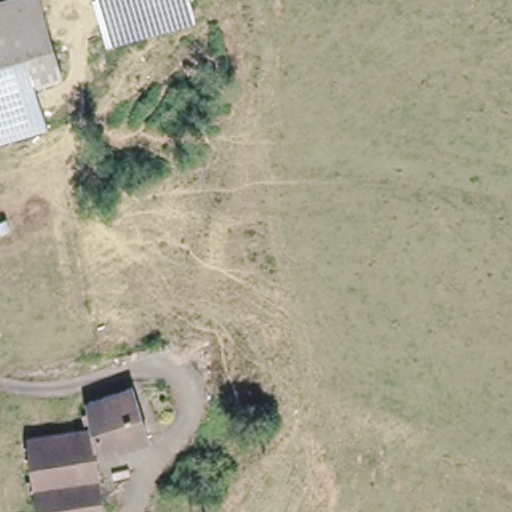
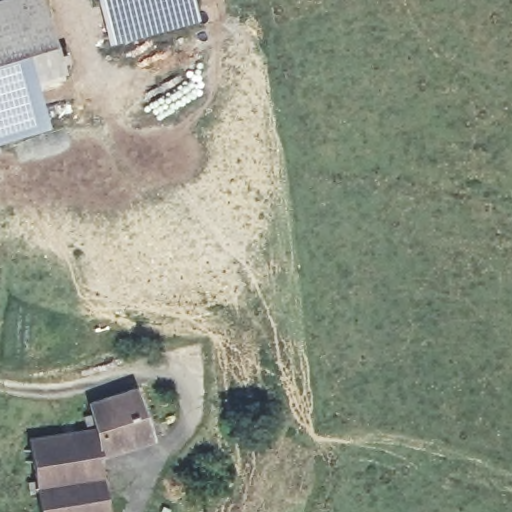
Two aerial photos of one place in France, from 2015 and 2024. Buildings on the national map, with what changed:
unchanged [(62,70),(39,79),(0,91),(0,1),(5,0),(41,0),(62,70)]
unchanged [(196,18),(107,44),(95,0),(191,0),(196,18)]
unchanged [(51,126),(0,143),(0,91),(39,79),(51,126)]
unchanged [(90,427),(88,404),(135,394),(141,447),(99,455),(107,512),(38,512),(27,440),(90,427)]

